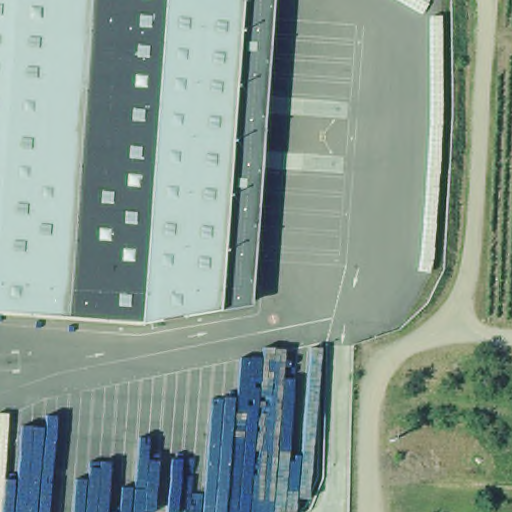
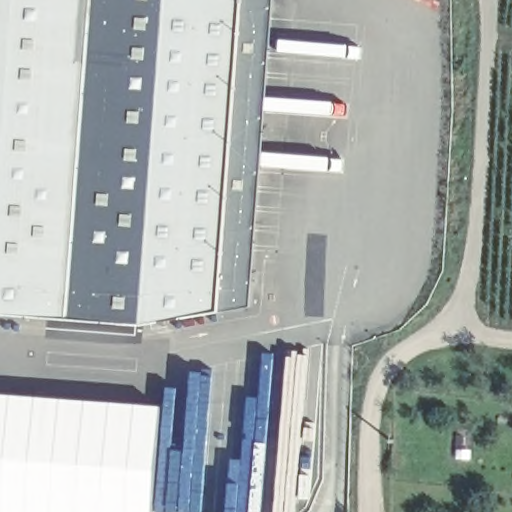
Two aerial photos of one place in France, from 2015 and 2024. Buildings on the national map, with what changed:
unchanged [(220,314),(141,327),(0,315),(0,0),(276,0),(252,306),(220,314)]
new [(0,397),(46,400),(37,512),(0,512),(0,397)]
new [(46,400),(147,408),(140,512),(37,512),(46,400)]

